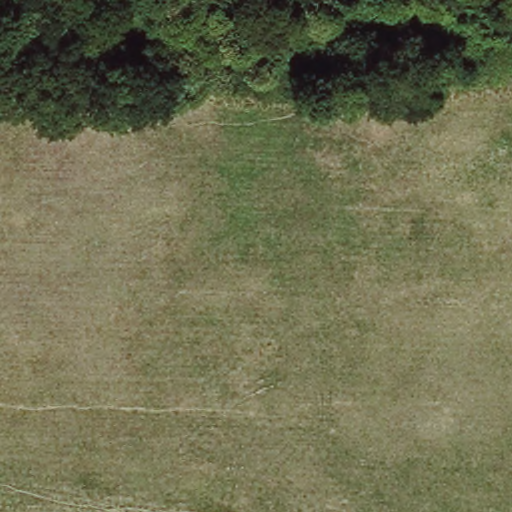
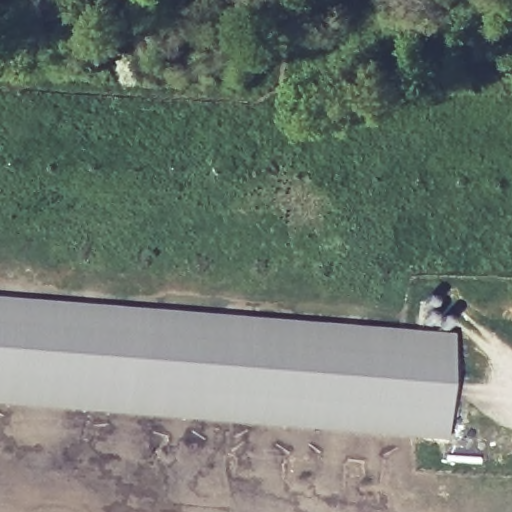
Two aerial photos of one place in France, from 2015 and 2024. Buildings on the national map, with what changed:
new [(445,443),(0,408),(0,300),(452,338),(445,443)]

